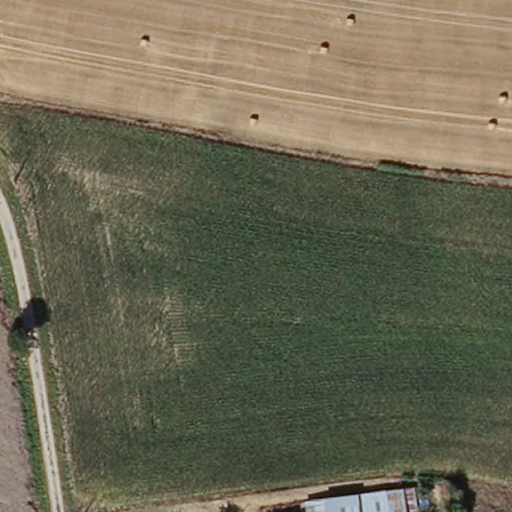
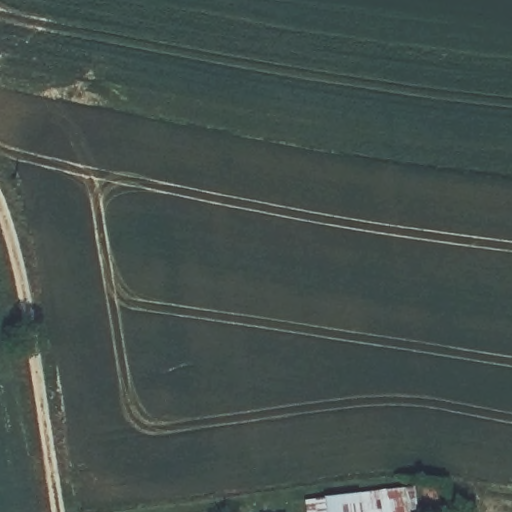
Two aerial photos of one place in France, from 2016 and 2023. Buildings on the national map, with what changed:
unchanged [(394,512),(329,512),(326,495),(391,487),(394,512)]

